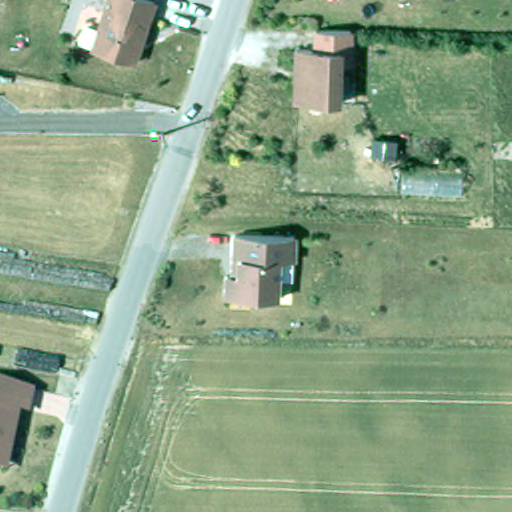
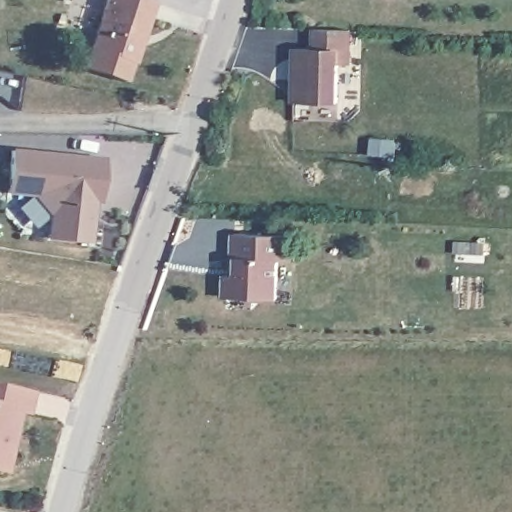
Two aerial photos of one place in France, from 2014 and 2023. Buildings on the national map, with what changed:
unchanged [(107,0),(152,0),(135,58),(93,45),(107,0)]
unchanged [(315,26),(351,27),(350,61),(340,60),(338,100),(295,98),(297,45),(315,46),(315,26)]
new [(127,82),(82,69),(89,44),(93,45),(135,58),(127,82)]
new [(105,158),(102,199),(97,198),(92,243),(46,238),(49,215),(32,196),(5,194),(10,149),(105,158)]
unchanged [(234,255),(235,229),(295,231),(294,257),(279,257),(279,267),(239,266),(239,256),(234,255)]
unchanged [(277,296),(226,295),(227,273),(239,273),(239,266),(279,267),(277,296)]
unchanged [(22,390),(33,393),(29,414),(19,412),(15,427),(12,446),(0,455),(0,386),(22,390)]

